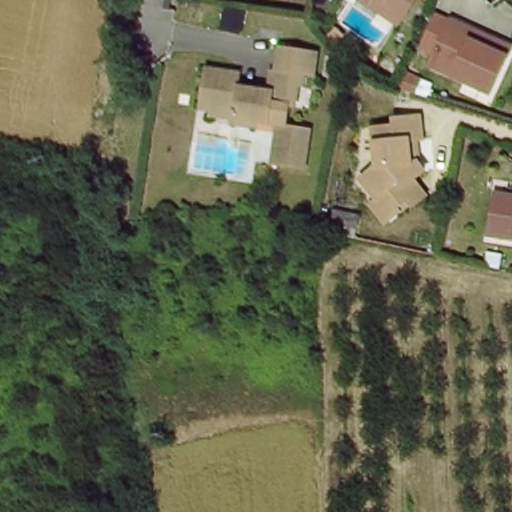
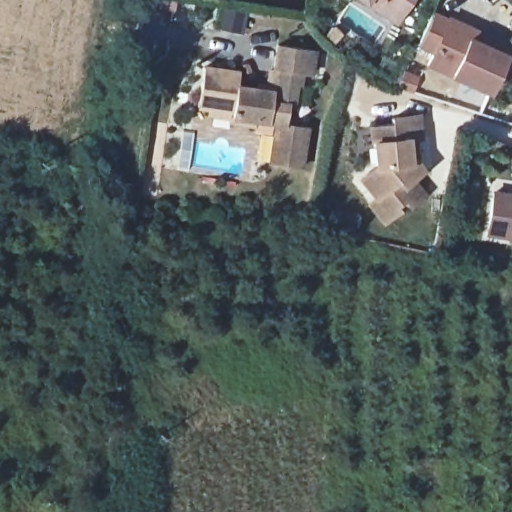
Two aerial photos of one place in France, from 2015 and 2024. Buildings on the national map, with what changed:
unchanged [(370,2),(366,0),(416,0),(407,13),(400,23),(370,2)]
unchanged [(227,9),(240,11),(238,21),(225,19),(227,9)]
unchanged [(423,64),(444,19),(469,30),(505,46),(500,55),(484,92),(423,64)]
unchanged [(235,122),(237,115),(216,112),(217,108),(203,106),(208,66),(244,72),(242,85),(277,90),(283,45),(320,50),(317,75),(307,73),(305,85),(301,85),(298,106),(293,105),(290,124),(312,127),(307,168),(275,164),(282,122),(259,119),(258,125),(235,122)]
unchanged [(403,71),(419,78),(412,92),(397,86),(403,71)]
unchanged [(371,170),(368,130),(388,129),(387,123),(415,120),(417,143),(403,145),(405,166),(412,166),(418,175),(407,184),(420,200),(406,210),(401,204),(391,212),(394,215),(380,227),(364,207),(370,202),(355,184),(371,170)]
unchanged [(493,226),(499,192),(512,194),(512,237),(492,234),(493,226)]
unchanged [(332,209),(359,215),(356,227),(330,222),(332,209)]

